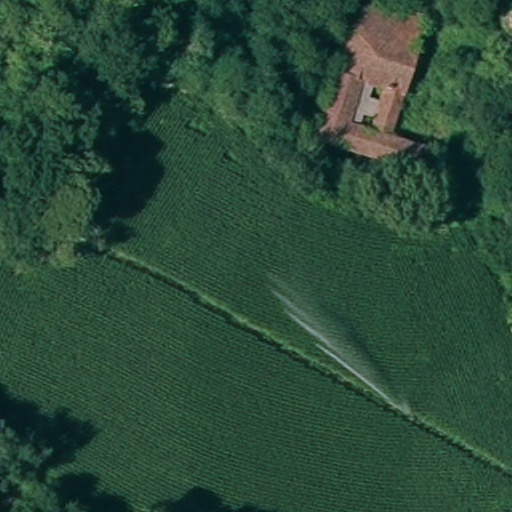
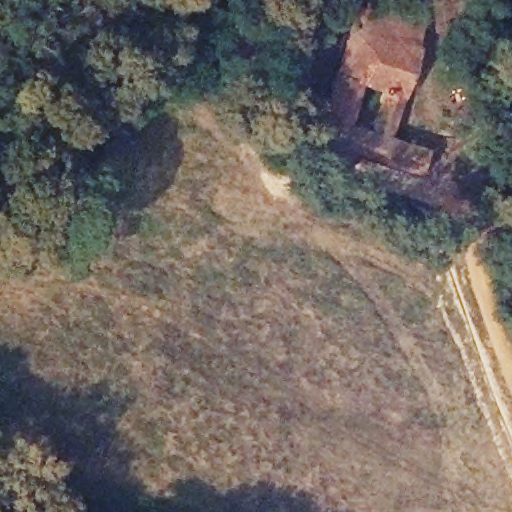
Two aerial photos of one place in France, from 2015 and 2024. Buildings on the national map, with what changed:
unchanged [(382,2),(380,11),(404,20),(408,10),(426,15),(384,127),(390,130),(381,155),(313,135),(361,0),(378,0),(382,2)]
unchanged [(420,166),(381,155),(390,130),(427,142),(420,166)]

